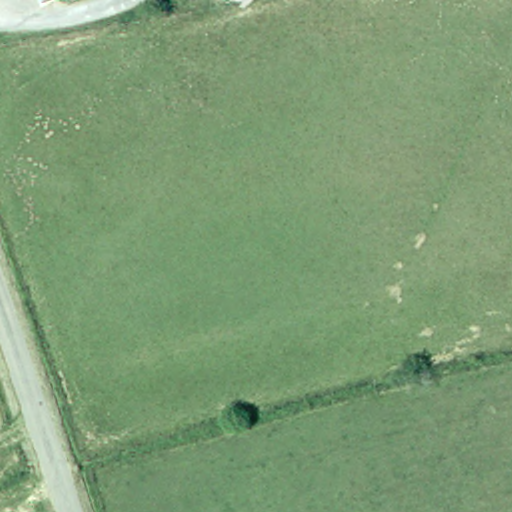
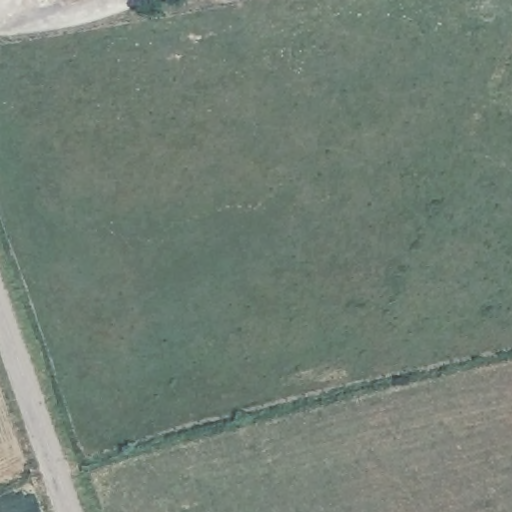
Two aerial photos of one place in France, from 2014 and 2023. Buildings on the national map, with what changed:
[]

